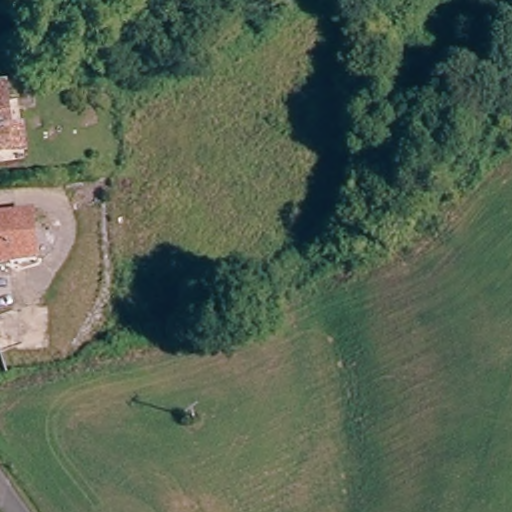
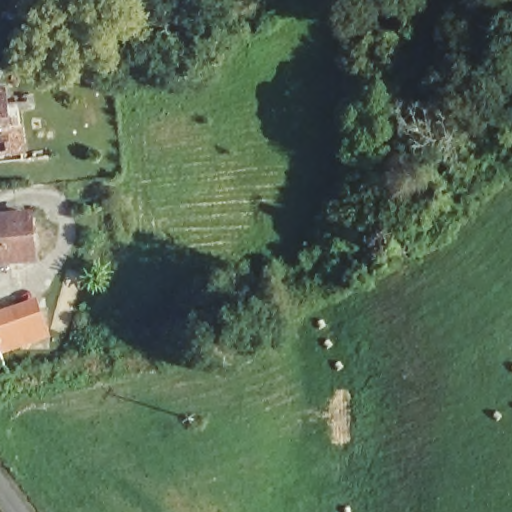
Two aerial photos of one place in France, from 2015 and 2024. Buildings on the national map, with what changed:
unchanged [(25,132),(28,152),(19,153),(16,153),(0,155),(0,92),(9,92),(13,133),(23,132),(25,132)]
unchanged [(38,212),(41,257),(0,260),(0,215),(38,212)]
new [(36,296),(50,340),(1,356),(0,353),(0,308),(36,296)]

